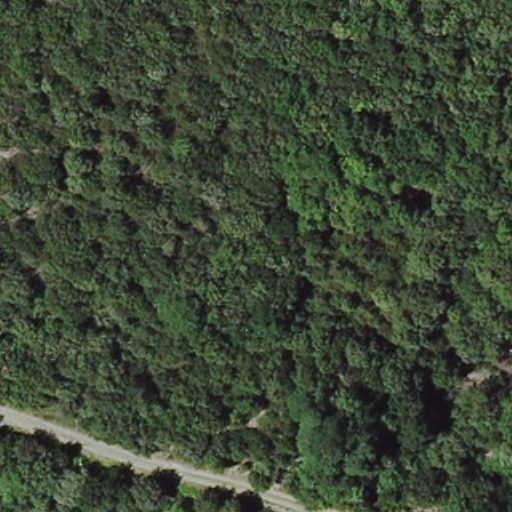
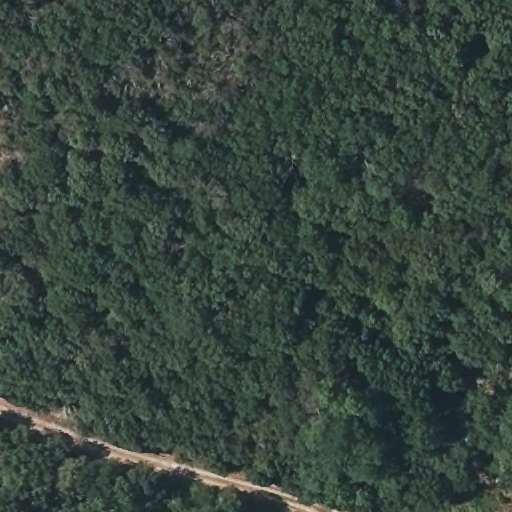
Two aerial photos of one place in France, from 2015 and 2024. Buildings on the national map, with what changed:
unchanged [(300,225),(301,236),(291,237),(291,225),(300,225)]

